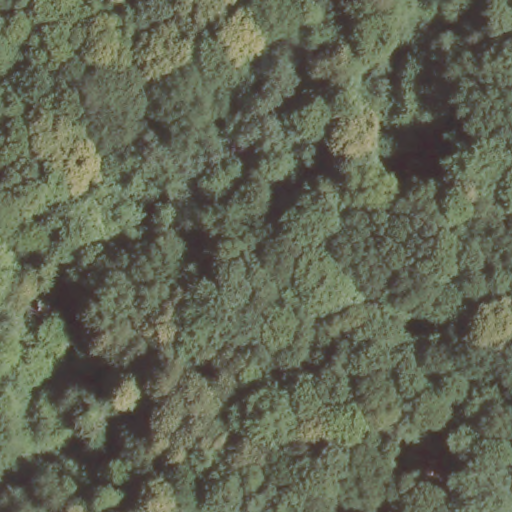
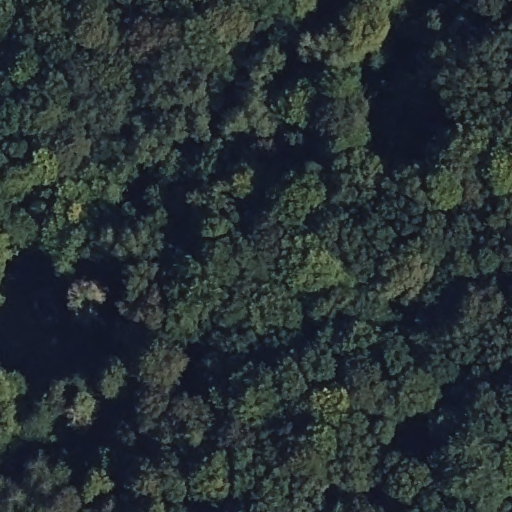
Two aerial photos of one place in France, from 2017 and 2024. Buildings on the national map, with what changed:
unchanged [(78,392),(48,404),(18,291),(52,283),(78,392)]

